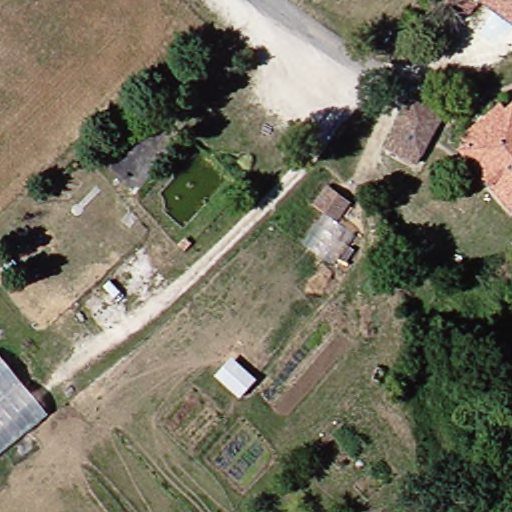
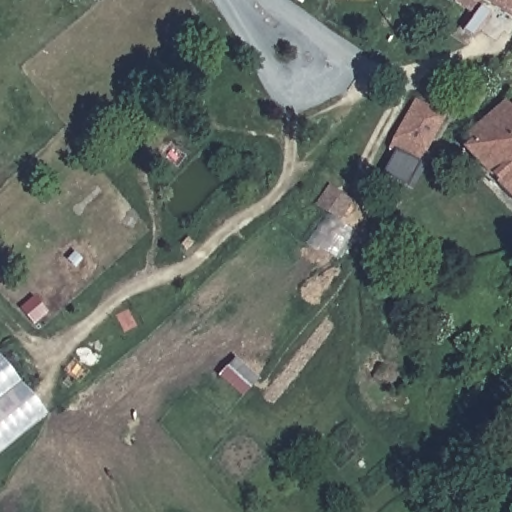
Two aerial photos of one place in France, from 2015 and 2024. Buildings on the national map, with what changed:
unchanged [(512,0),(512,19),(487,0),(512,0)]
unchanged [(195,89),(173,99),(166,84),(189,75),(195,89)]
unchanged [(429,102),(456,121),(428,167),(401,145),(429,102)]
unchanged [(487,150),(480,140),(512,111),(512,196),(479,157),(487,150)]
unchanged [(361,201),(347,221),(365,234),(339,263),(321,248),(330,237),(322,229),(336,214),(321,205),(335,184),(361,201)]
unchanged [(7,357),(58,416),(0,460),(0,362),(7,357)]

